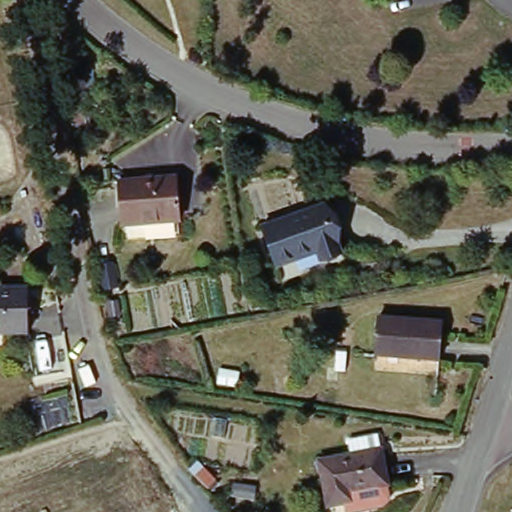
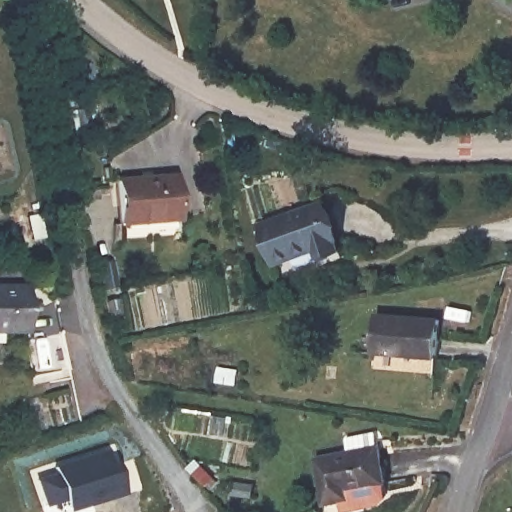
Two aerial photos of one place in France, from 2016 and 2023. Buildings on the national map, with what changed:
unchanged [(178,180),(185,224),(126,232),(120,189),(178,180)]
unchanged [(326,204),(343,254),(318,264),(315,254),(279,266),(265,225),(326,204)]
unchanged [(113,264),(120,289),(107,292),(100,268),(113,264)]
unchanged [(25,293),(26,333),(0,332),(0,287),(25,287),(25,293)]
unchanged [(444,328),(439,364),(377,358),(383,319),(444,328)]
unchanged [(322,458),(321,456),(353,451),(351,437),(380,432),(388,482),(386,483),(389,497),(382,504),(347,509),(345,499),(328,502),(325,483),(322,458)]
new [(67,503),(47,508),(37,475),(58,467),(109,451),(113,466),(117,464),(127,495),(73,512),(71,512),(67,503)]

